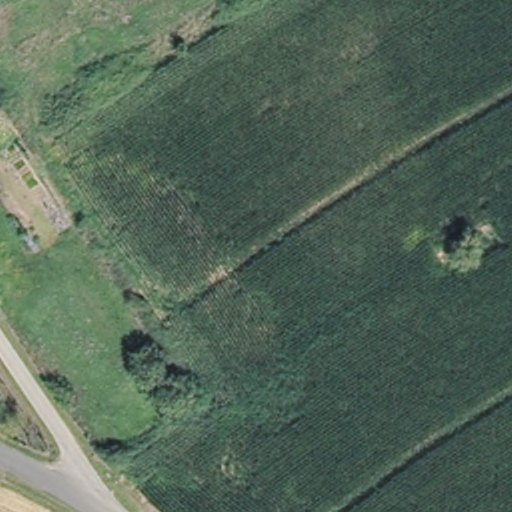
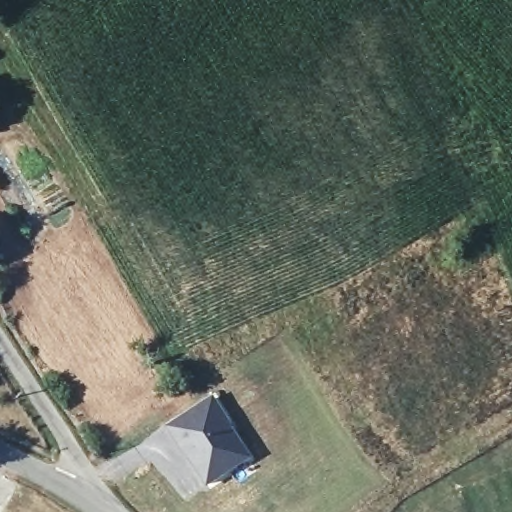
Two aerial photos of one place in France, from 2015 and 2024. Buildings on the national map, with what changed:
new [(252,459),(207,487),(167,427),(214,397),(252,459)]

